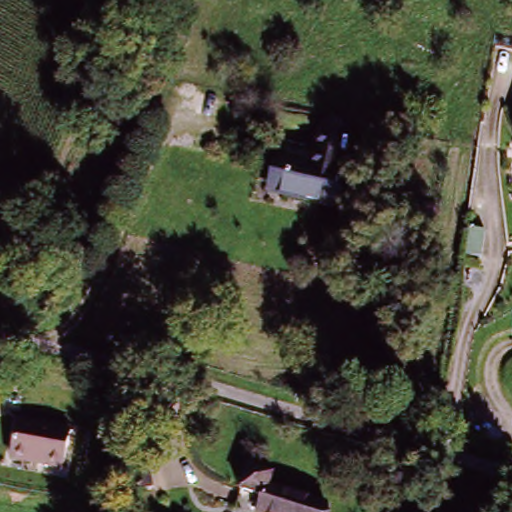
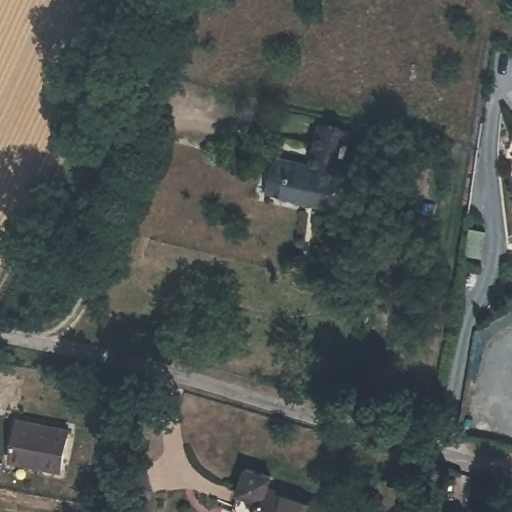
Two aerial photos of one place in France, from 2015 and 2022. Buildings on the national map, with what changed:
unchanged [(324,128),(352,134),(350,143),(352,144),(351,153),(353,153),(350,175),(317,170),(324,128)]
unchanged [(350,175),(343,210),(316,207),(313,202),(292,198),(277,195),(280,165),(296,167),(317,170),(350,175)]
unchanged [(69,430),(63,473),(11,465),(17,422),(69,430)]
unchanged [(273,484),(333,506),(331,512),(255,512),(259,505),(232,494),(242,467),(276,476),(273,484)]

